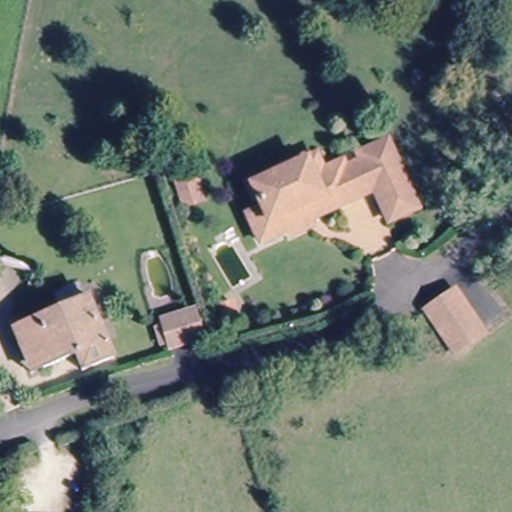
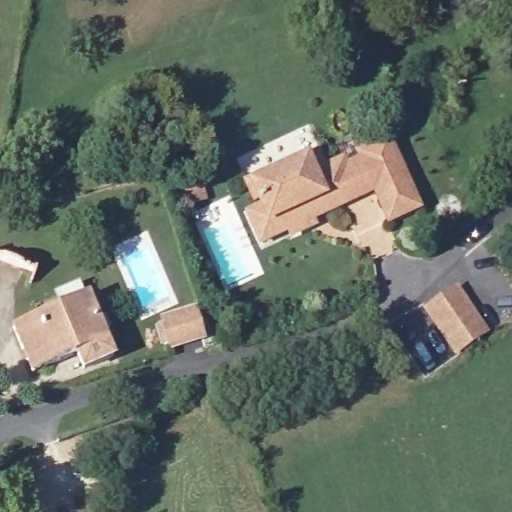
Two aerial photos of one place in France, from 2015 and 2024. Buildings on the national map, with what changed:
unchanged [(246,216),(261,209),(251,189),(313,156),(320,172),(336,164),(340,170),(357,163),(354,156),(371,149),(382,144),(412,211),(402,215),(385,224),(370,190),(305,220),(309,228),(285,239),(282,232),(258,243),(246,216)]
unchanged [(210,200),(181,208),(172,177),(200,170),(210,200)]
unchanged [(9,253),(0,250),(0,246),(7,221),(50,234),(42,263),(30,259),(9,253)]
unchanged [(421,308),(453,289),(485,342),(450,362),(421,308)]
unchanged [(25,364),(12,334),(85,304),(110,363),(82,374),(75,359),(47,371),(30,378),(25,364)]
unchanged [(193,313),(201,339),(170,349),(162,323),(193,313)]

